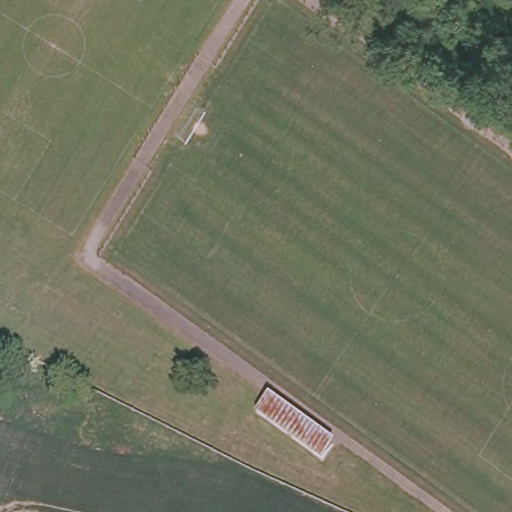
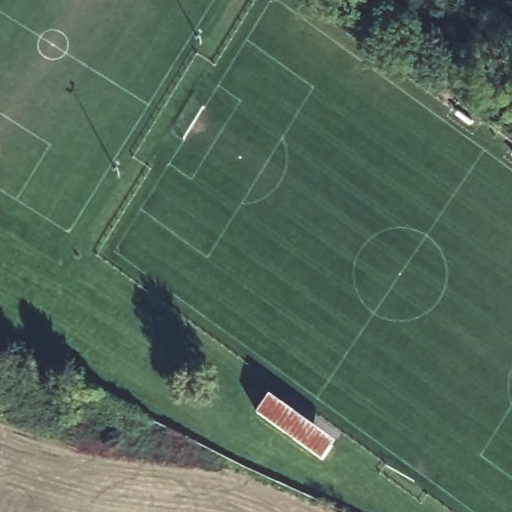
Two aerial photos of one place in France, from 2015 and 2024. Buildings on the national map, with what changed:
unchanged [(335,443),(320,465),(252,415),(267,392),(335,443)]

